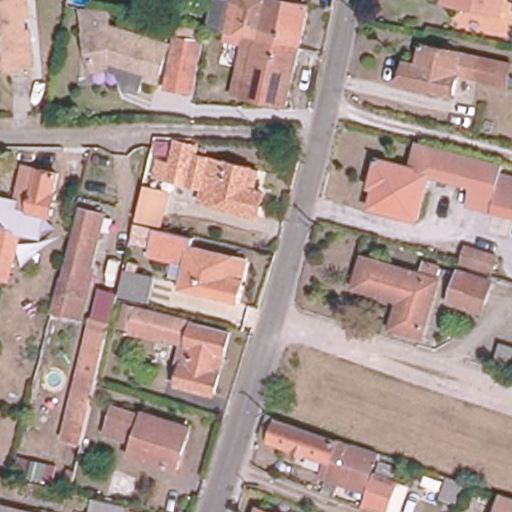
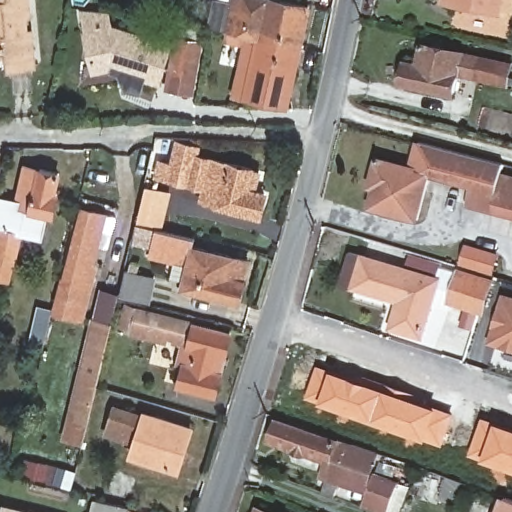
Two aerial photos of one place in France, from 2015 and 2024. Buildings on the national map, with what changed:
unchanged [(24,4),(26,16),(27,32),(31,31),(35,65),(11,68),(10,55),(9,47),(0,48),(0,0),(28,0),(28,3),(24,4)]
unchanged [(248,36),(234,33),(226,31),(210,30),(217,0),(232,4),(233,0),(280,0),(309,6),(300,47),(248,36)]
unchanged [(481,6),(449,0),(482,0),(481,6)]
unchanged [(170,40),(158,75),(111,60),(94,65),(84,28),(112,21),(170,40)]
unchanged [(165,97),(167,82),(177,32),(201,36),(192,86),(190,101),(165,97)]
unchanged [(287,106),(236,95),(248,36),(300,47),(287,106)]
unchanged [(450,95),(397,84),(402,62),(414,65),(419,45),(458,53),(454,75),(450,95)]
unchanged [(458,53),(509,64),(505,85),(454,75),(458,53)]
unchanged [(155,162),(168,165),(174,141),(193,146),(191,155),(249,170),(244,189),(261,194),(256,216),(197,201),(200,187),(152,175),(155,162)]
unchanged [(372,159),(414,170),(421,144),(500,165),(498,176),(490,204),(489,209),(464,202),(469,184),(426,174),(414,220),(367,208),(373,184),(366,182),(372,159)]
unchanged [(53,195),(48,215),(23,210),(6,283),(0,281),(0,198),(13,201),(21,166),(54,174),(50,194),(53,195)]
unchanged [(512,209),(490,204),(498,176),(512,180),(512,209)]
unchanged [(141,187),(165,192),(158,225),(134,219),(141,187)]
unchanged [(84,282),(87,283),(78,319),(51,312),(59,276),(62,277),(79,210),(100,215),(84,282)]
unchanged [(151,228),(191,237),(189,247),(244,260),(234,303),(177,289),(184,262),(174,260),(176,254),(147,246),(151,228)]
unchanged [(459,263),(464,247),(493,256),(489,272),(459,263)]
unchanged [(435,280),(418,335),(389,327),(397,300),(352,287),(360,258),(435,280)]
unchanged [(150,277),(144,301),(116,295),(121,270),(150,277)]
unchanged [(487,282),(484,292),(478,311),(447,301),(456,272),(487,282)]
new [(504,291),(512,294),(512,350),(489,342),(504,291)]
unchanged [(210,393),(175,384),(180,363),(175,362),(180,343),(171,341),(172,337),(163,335),(161,340),(129,331),(130,328),(116,325),(122,305),(190,322),(190,323),(226,332),(221,354),(213,352),(208,371),(216,373),(210,393)]
unchanged [(93,386),(79,442),(60,438),(87,320),(107,325),(93,386)]
demolished [(512,367),(497,362),(503,345),(512,347),(512,367)]
new [(443,445),(428,440),(321,403),(308,399),(319,366),(332,371),(357,380),(359,373),(420,395),(418,400),(439,407),(455,413),(443,445)]
unchanged [(187,428),(180,450),(172,448),(166,467),(127,455),(131,442),(134,432),(105,423),(110,406),(139,416),(140,413),(187,428)]
new [(470,456),(483,418),(498,423),(512,428),(512,470),(484,460),(470,456)]
unchanged [(372,451),(365,470),(371,472),(395,481),(385,512),(373,512),(359,507),(359,506),(364,491),(337,482),(324,477),(319,475),(324,461),(265,440),(273,419),(346,445),(347,443),(372,451)]
unchanged [(433,471),(470,485),(463,503),(426,490),(433,471)]
unchanged [(512,501),(512,512),(497,512),(502,497),(512,501)]
unchanged [(86,512),(89,498),(109,502),(121,505),(119,512),(86,512)]
unchanged [(274,512),(259,512),(260,507),(274,512)]
unchanged [(21,512),(5,512),(6,508),(21,512)]
unchanged [(128,512),(128,511),(131,512),(128,512)]

